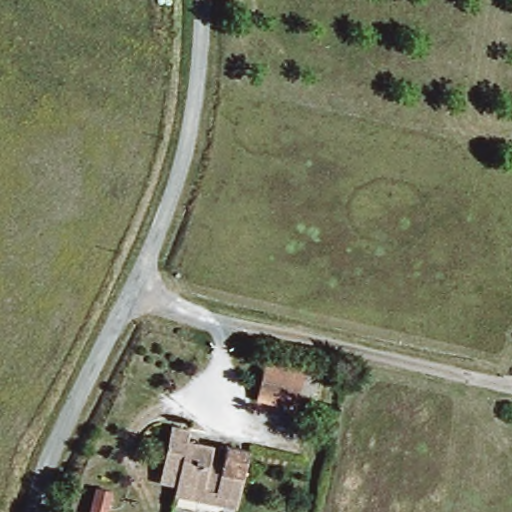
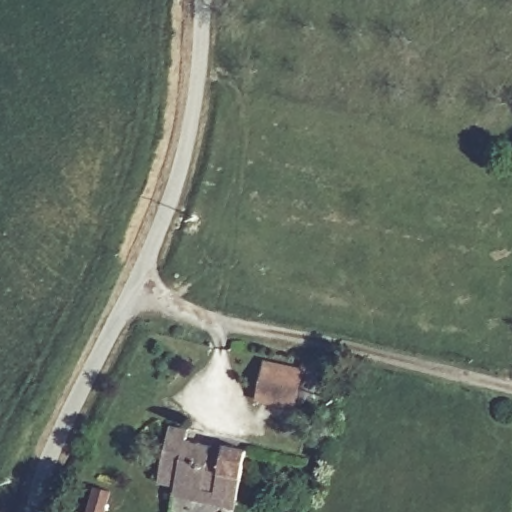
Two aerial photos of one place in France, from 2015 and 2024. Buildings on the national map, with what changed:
unchanged [(300,367),(292,399),(256,393),(264,357),(300,367)]
unchanged [(159,470),(169,416),(185,419),(185,429),(210,433),(210,440),(224,443),(225,438),(246,441),(239,484),(235,499),(175,484),(176,475),(159,470)]
unchanged [(90,488),(105,491),(100,512),(85,512),(90,488)]

